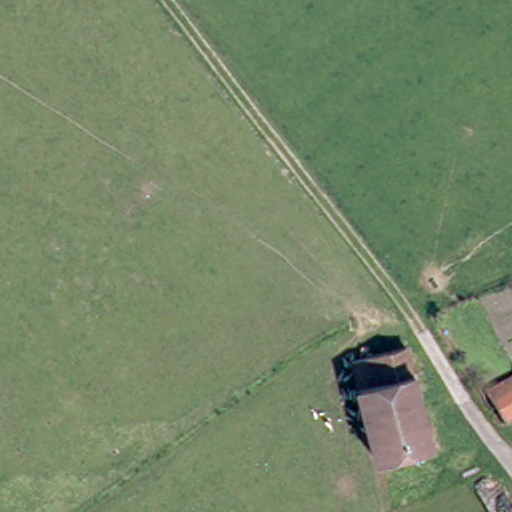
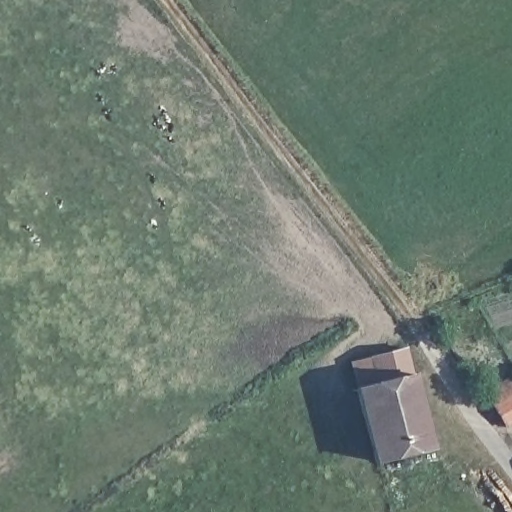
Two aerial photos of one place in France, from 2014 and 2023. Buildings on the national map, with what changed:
unchanged [(374,458),(359,384),(354,359),(375,354),(411,347),(416,373),(431,447),(374,458)]
unchanged [(512,373),(512,425),(507,427),(484,388),(512,373)]

